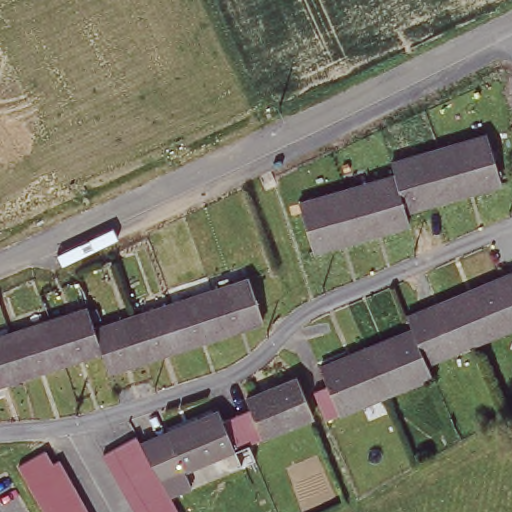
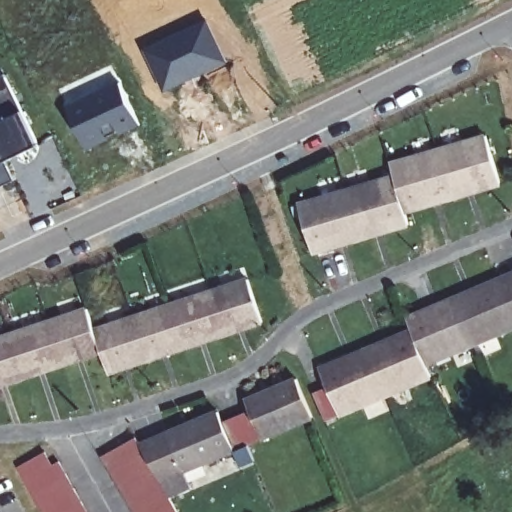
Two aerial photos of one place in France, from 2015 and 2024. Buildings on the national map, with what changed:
new [(227,63),(164,94),(144,50),(207,20),(227,63)]
unchanged [(0,154),(0,72),(5,70),(38,142),(16,152),(5,157),(2,159),(0,154)]
new [(140,126),(86,151),(66,106),(119,82),(140,126)]
unchanged [(437,152),(484,139),(498,189),(467,197),(465,190),(450,194),(437,152)]
unchanged [(428,200),(429,209),(404,216),(392,178),(390,167),(437,152),(450,194),(428,200)]
new [(0,189),(0,157),(12,184),(0,189)]
unchanged [(345,192),(392,178),(404,216),(407,227),(374,237),(371,227),(356,232),(345,192)]
unchanged [(335,237),(337,244),(311,251),(300,205),(345,192),(356,232),(335,237)]
unchanged [(481,297),(477,289),(503,277),(506,285),(512,298),(512,328),(477,345),(461,306),(481,297)]
unchanged [(215,291),(252,278),(266,317),(263,318),(262,323),(254,326),(252,320),(244,323),(247,331),(230,336),(215,291)]
unchanged [(512,282),(512,298),(506,285),(512,282)]
unchanged [(216,341),(215,335),(206,337),(209,343),(191,349),(176,304),(215,291),(230,336),(216,341)]
unchanged [(139,317),(176,304),(191,349),(176,354),(174,347),(167,349),(169,357),(154,362),(139,317)]
unchanged [(412,317),(444,304),(448,312),(461,306),(477,345),(432,363),(417,330),(412,317)]
unchanged [(87,358),(84,352),(77,355),(80,362),(64,367),(50,323),(90,310),(97,332),(104,352),(87,358)]
unchanged [(139,317),(154,362),(137,367),(135,361),(127,363),(129,370),(112,375),(104,352),(97,332),(139,317)]
unchanged [(11,337),(50,323),(64,367),(46,372),(44,365),(38,367),(40,374),(24,378),(11,337)]
unchanged [(375,355),(392,347),(389,341),(417,330),(432,363),(437,375),(391,395),(375,355)]
unchanged [(24,378),(7,384),(5,378),(0,380),(0,340),(11,337),(24,378)]
unchanged [(319,391),(333,385),(326,368),(356,356),(359,362),(375,355),(391,395),(345,414),(332,420),(319,391)]
unchanged [(235,420),(250,413),(247,404),(298,384),(314,421),(245,450),(235,420)]
unchanged [(0,389),(0,387),(1,388),(0,389)]
unchanged [(127,496),(126,493),(122,487),(119,482),(118,480),(112,470),(110,466),(102,452),(138,431),(146,445),(142,437),(172,431),(223,409),(227,418),(232,433),(239,447),(187,469),(194,486),(175,495),(170,487),(177,501),(178,501),(184,512),(137,512),(134,507),(127,496)]
unchanged [(22,486),(14,473),(12,470),(49,452),(55,461),(57,466),(65,478),(72,491),(75,493),(82,503),(87,512),(37,512),(29,499),(22,486)]

